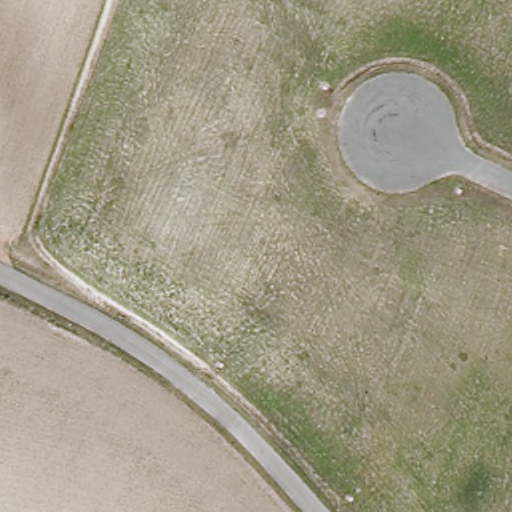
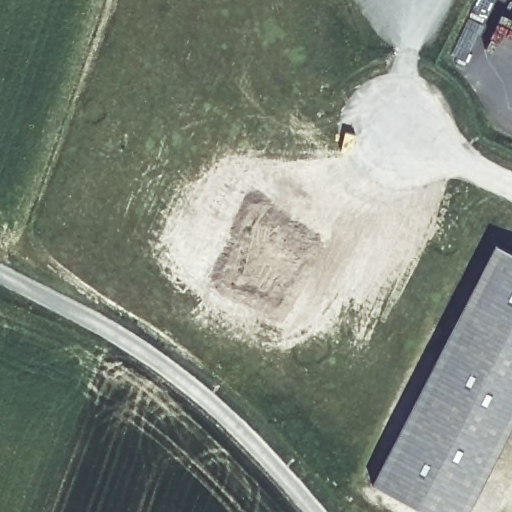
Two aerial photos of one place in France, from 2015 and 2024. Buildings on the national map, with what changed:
new [(469,512),(424,512),(371,485),(495,244),(512,252),(512,428),(469,512)]

